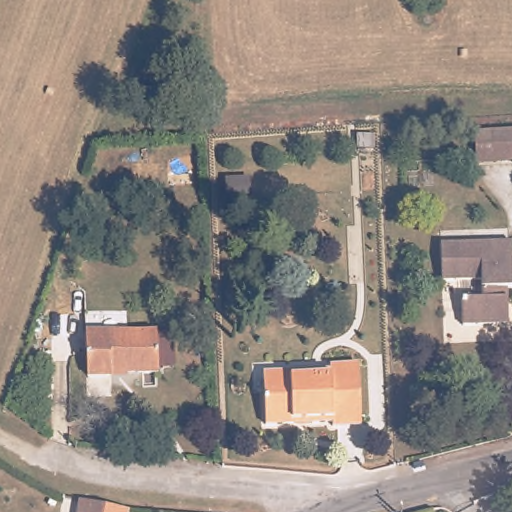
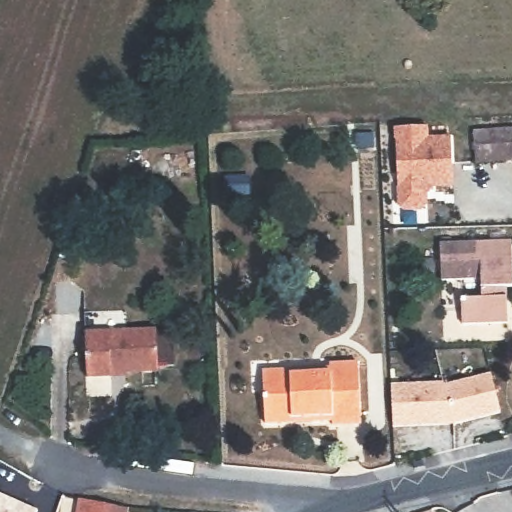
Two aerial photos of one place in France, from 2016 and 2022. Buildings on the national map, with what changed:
new [(426,126),(426,138),(450,137),(452,185),(429,186),(425,192),(425,204),(420,209),(403,210),(397,205),(393,127),(426,126)]
unchanged [(481,160),(478,132),(512,129),(512,159),(482,162),(481,160)]
unchanged [(466,322),(465,297),(486,297),(485,277),(445,278),(443,244),(512,240),(512,285),(511,286),(511,296),(512,321),(466,322)]
unchanged [(110,374),(86,375),(85,363),(85,331),(156,329),(157,368),(124,370),(124,374),(110,374)]
unchanged [(263,423),(262,370),(291,369),(329,368),(329,362),(357,362),(357,370),(360,423),(332,425),(331,425),(331,421),(292,422),(263,423)]
new [(493,374),(503,412),(457,424),(447,386),(493,374)]
new [(447,382),(447,386),(457,424),(396,427),(394,385),(447,382)]
unchanged [(124,512),(73,512),(77,493),(97,497),(126,502),(124,512)]

